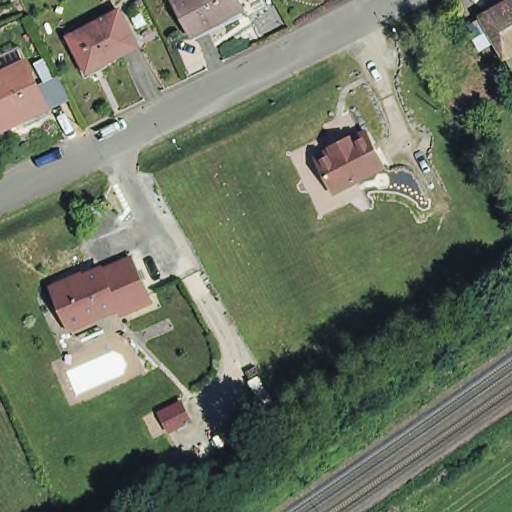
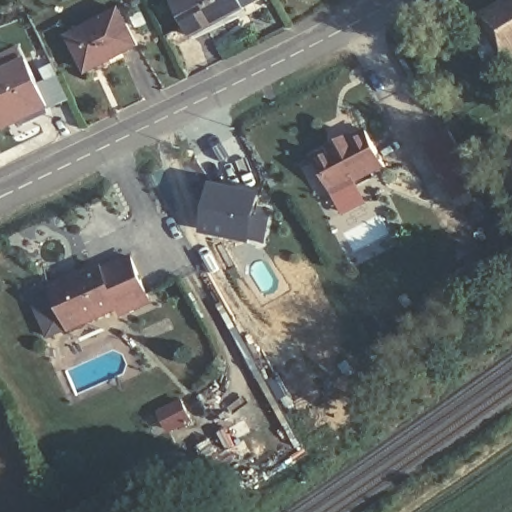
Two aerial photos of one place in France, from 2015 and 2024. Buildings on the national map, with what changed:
unchanged [(177,0),(242,0),(245,6),(193,34),(177,0)]
unchanged [(477,12),(497,0),(512,0),(512,77),(498,52),(477,12)]
unchanged [(117,10),(133,45),(83,69),(67,35),(117,10)]
unchanged [(0,85),(7,81),(1,67),(27,56),(33,69),(53,112),(0,138),(0,85)]
unchanged [(357,141),(371,133),(388,168),(337,194),(320,159),(336,151),(335,148),(355,138),(357,141)]
new [(259,192),(250,242),(200,232),(210,182),(259,192)]
unchanged [(53,283),(133,255),(152,306),(76,332),(53,283)]
unchanged [(181,402),(190,420),(168,431),(160,412),(181,402)]

